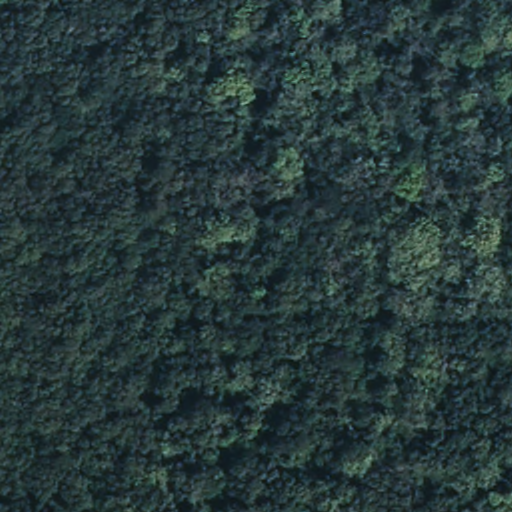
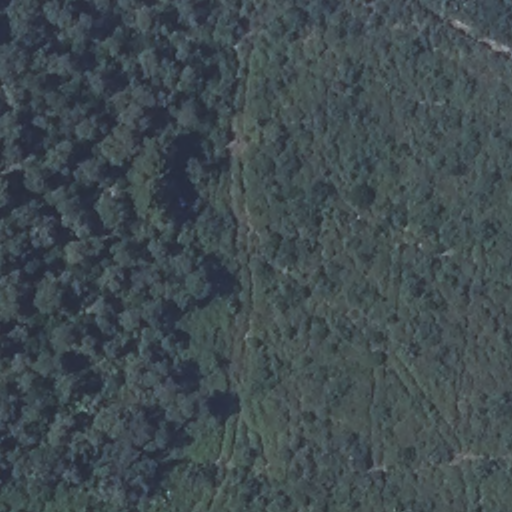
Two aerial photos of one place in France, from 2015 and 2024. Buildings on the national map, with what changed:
[]

